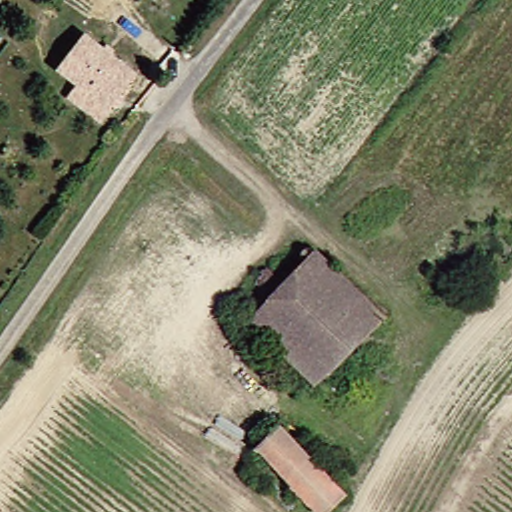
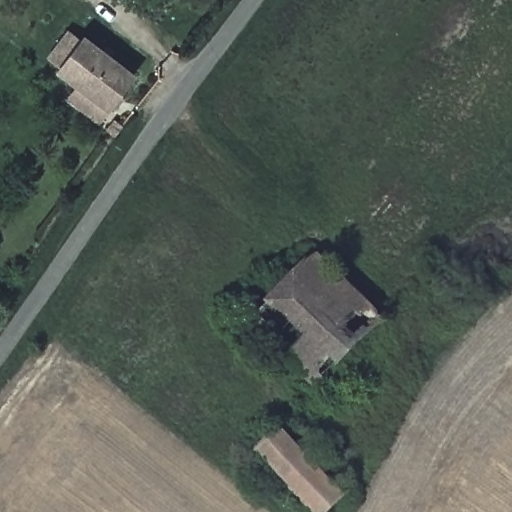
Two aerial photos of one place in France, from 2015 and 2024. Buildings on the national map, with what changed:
unchanged [(113,102),(64,62),(90,28),(140,68),(113,102)]
unchanged [(316,374),(262,321),(293,288),(328,253),(390,315),(355,350),(323,382),(316,374)]
unchanged [(253,292),(275,271),(293,288),(262,321),(251,310),(244,302),(253,292)]
unchanged [(283,427),(346,492),(324,512),(322,512),(261,450),(283,427)]

